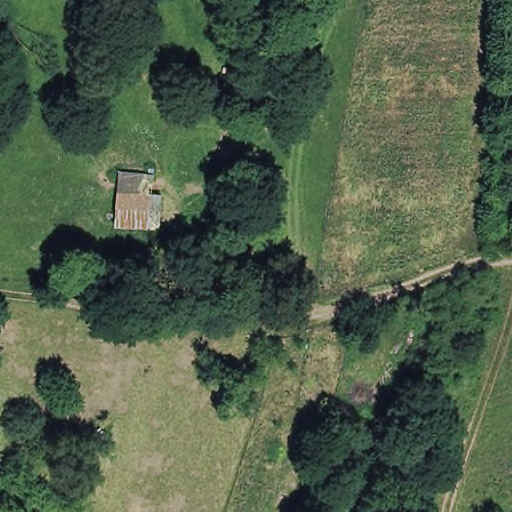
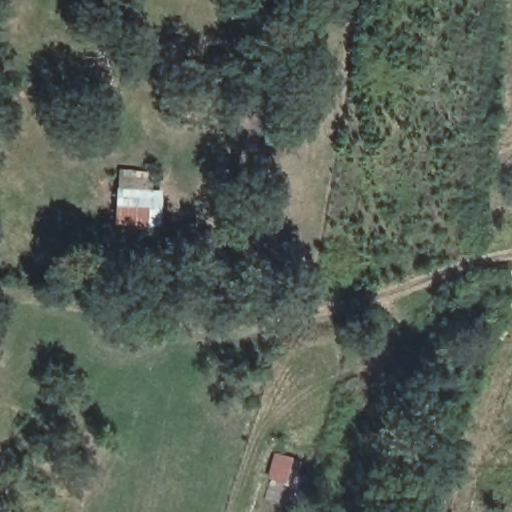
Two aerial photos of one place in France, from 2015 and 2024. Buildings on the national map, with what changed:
unchanged [(147,189),(145,222),(116,221),(117,189),(147,189)]

